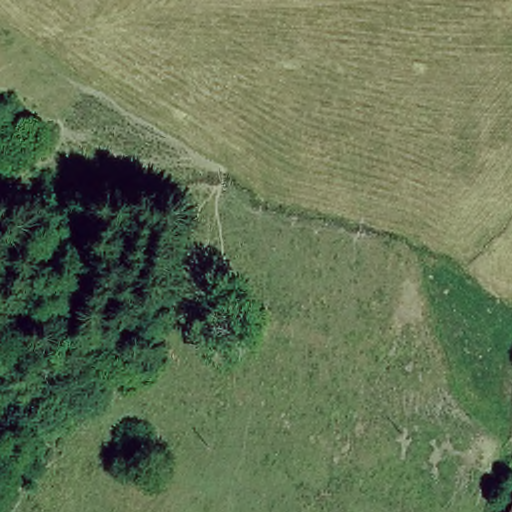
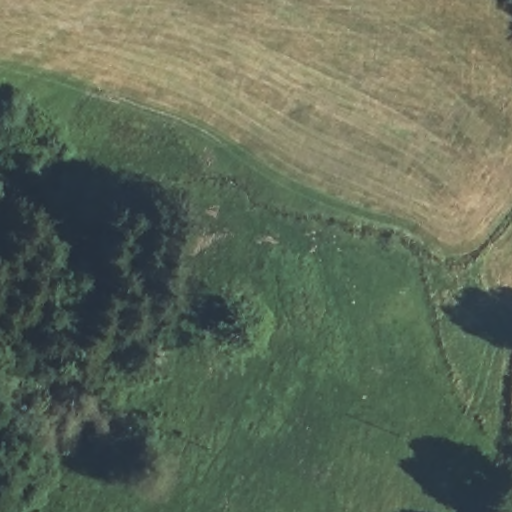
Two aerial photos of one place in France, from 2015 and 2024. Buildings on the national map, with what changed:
unchanged [(506,512),(512,498),(512,512),(506,512)]

